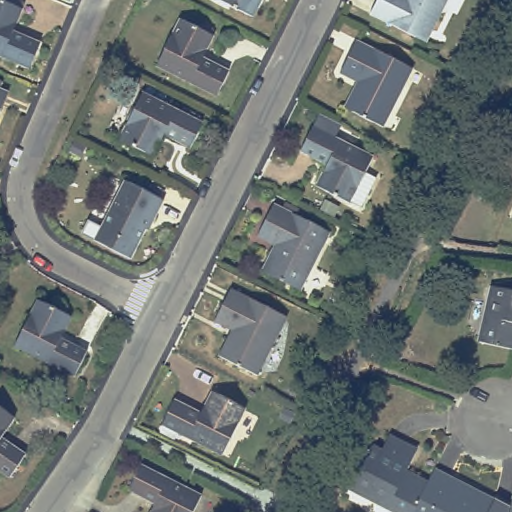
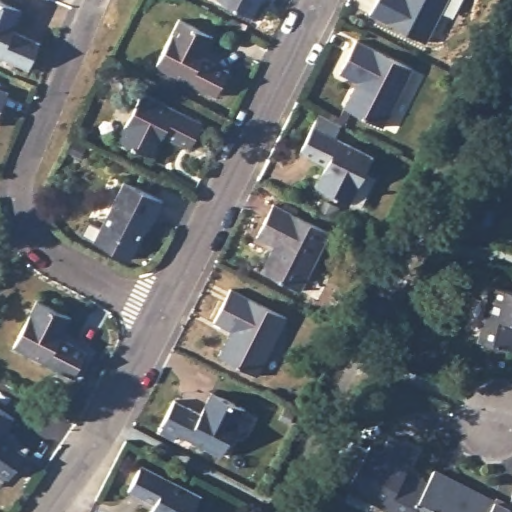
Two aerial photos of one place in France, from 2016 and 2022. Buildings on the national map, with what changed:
unchanged [(2,0),(26,10),(17,31),(44,42),(33,69),(0,55),(0,0),(2,0)]
unchanged [(260,0),(251,18),(216,0),(260,0)]
unchanged [(379,0),(450,0),(426,47),(369,20),(379,0)]
unchanged [(153,66),(177,20),(212,38),(202,58),(227,71),(213,98),(153,66)]
unchanged [(343,107),(355,83),(339,75),(356,41),(410,69),(382,126),(343,107)]
unchanged [(6,93),(0,107),(0,90),(6,93)]
unchanged [(117,139),(140,95),(201,124),(188,148),(163,136),(153,156),(117,139)]
unchanged [(358,205),(349,201),(348,203),(316,186),(326,165),(300,151),(312,128),(371,158),(363,173),(373,177),(358,205)]
unchanged [(93,241),(122,181),(162,201),(152,220),(150,218),(129,258),(93,241)]
unchanged [(261,275),(273,251),(256,243),(273,209),(329,238),(301,295),(261,275)]
unchanged [(489,288),(512,292),(512,348),(478,341),(489,288)]
unchanged [(217,355),(230,330),(212,321),(228,290),(285,318),(257,375),(217,355)]
unchanged [(11,343),(33,299),(69,317),(58,338),(83,352),(71,373),(11,343)]
unchanged [(166,426),(178,402),(203,414),(214,393),(248,409),(225,455),(166,426)]
unchanged [(0,471),(0,413),(12,420),(0,441),(25,456),(11,478),(0,471)]
unchanged [(345,487),(367,444),(381,451),(388,437),(414,450),(404,471),(427,481),(412,512),(395,512),(345,487)]
unchanged [(155,508),(130,495),(143,469),(202,498),(195,512),(153,512),(155,508)]
unchanged [(427,481),(432,470),(492,500),(486,512),(412,512),(427,481)]

